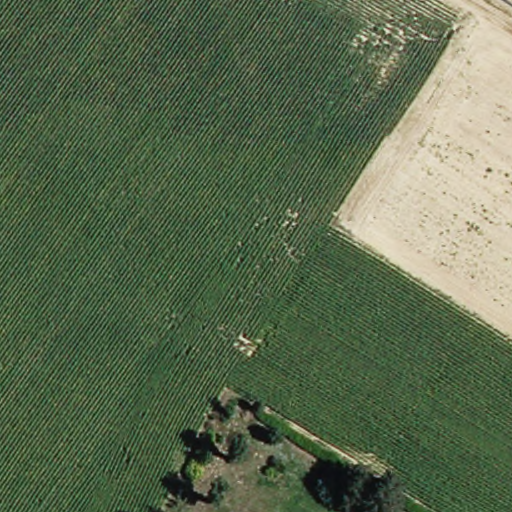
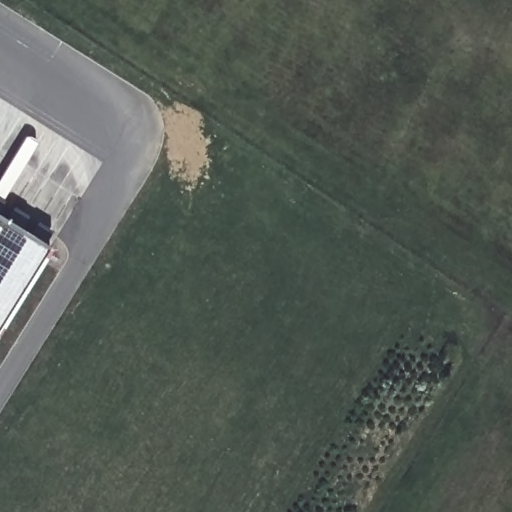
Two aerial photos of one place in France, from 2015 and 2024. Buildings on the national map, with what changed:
new [(50,247),(0,325),(0,216),(50,247)]

